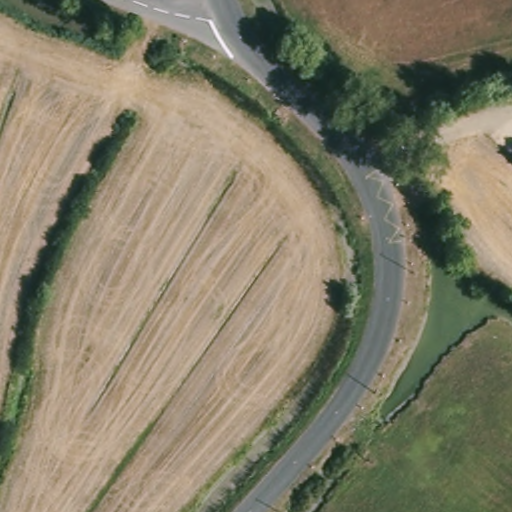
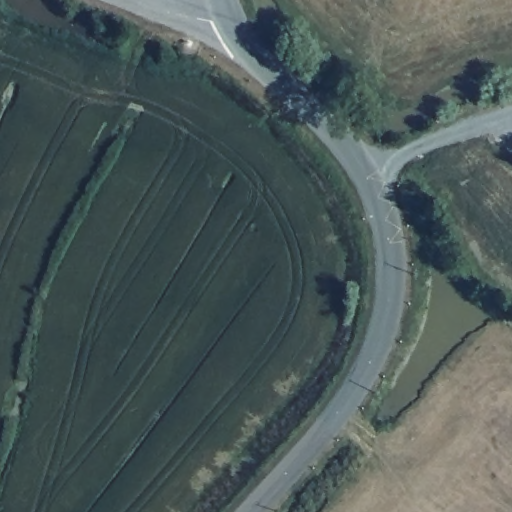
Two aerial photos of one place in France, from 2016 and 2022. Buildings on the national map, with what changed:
[]

